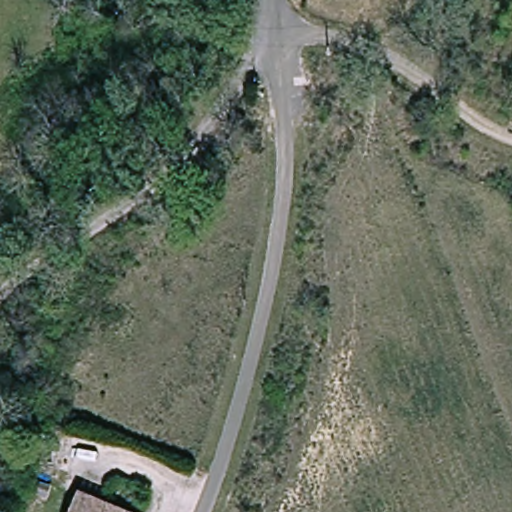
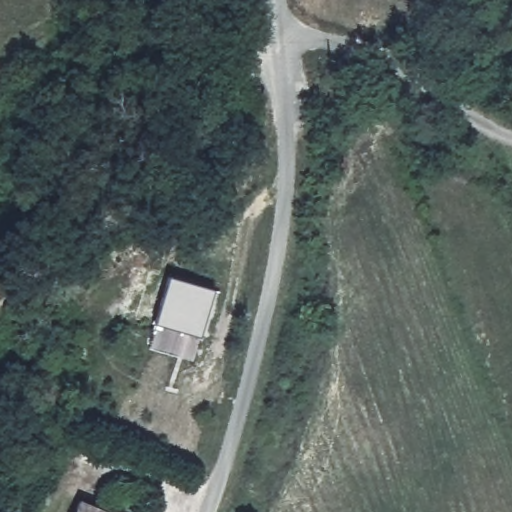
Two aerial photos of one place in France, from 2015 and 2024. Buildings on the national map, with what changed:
new [(215,291),(200,339),(154,326),(168,278),(215,291)]
unchanged [(25,313),(23,333),(5,332),(6,311),(25,313)]
unchanged [(80,505),(97,512),(76,512),(80,505)]

